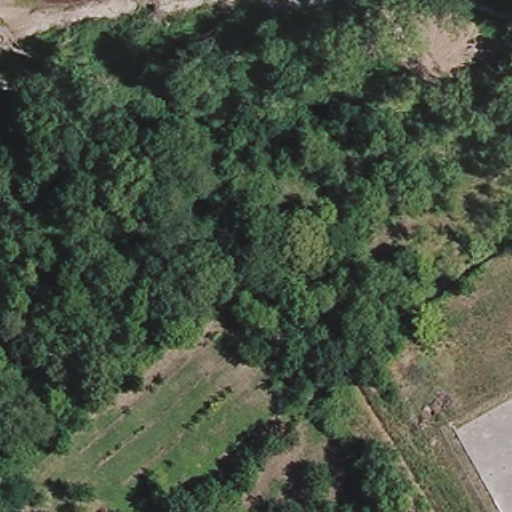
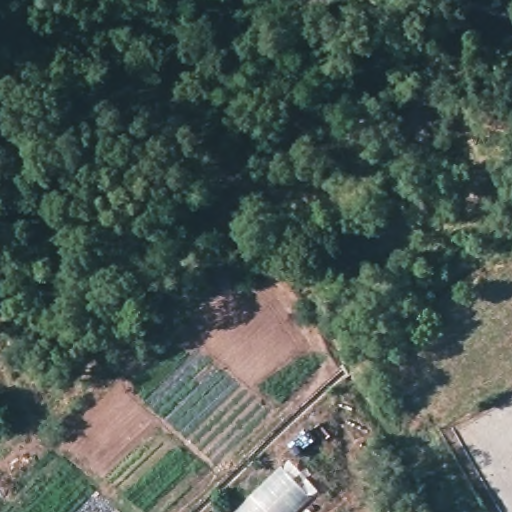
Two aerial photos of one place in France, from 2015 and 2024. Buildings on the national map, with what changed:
new [(289,457),(319,491),(297,512),(231,512),(289,457)]

